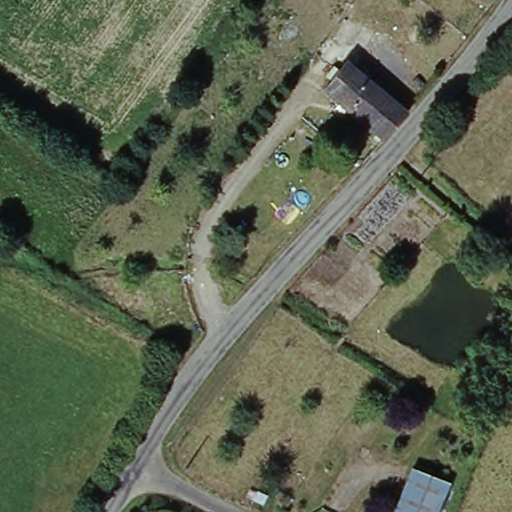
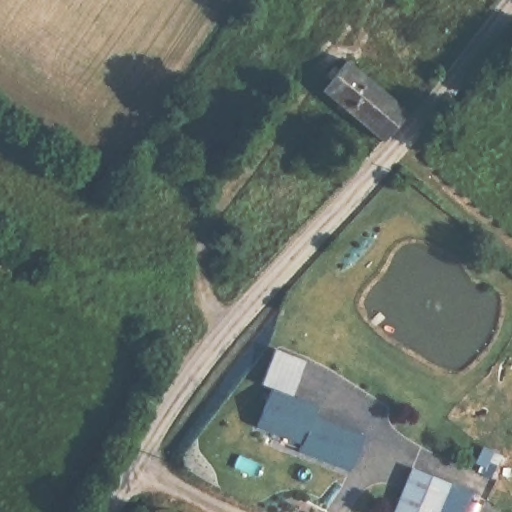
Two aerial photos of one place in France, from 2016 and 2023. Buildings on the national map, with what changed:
unchanged [(322,91),(343,67),(402,121),(381,147),(322,91)]
new [(311,402),(318,405),(315,415),(365,435),(350,470),(300,450),(305,436),(279,426),(277,433),(257,425),(272,387),(311,402)]
unchanged [(451,487),(440,512),(397,512),(414,472),(451,487)]

